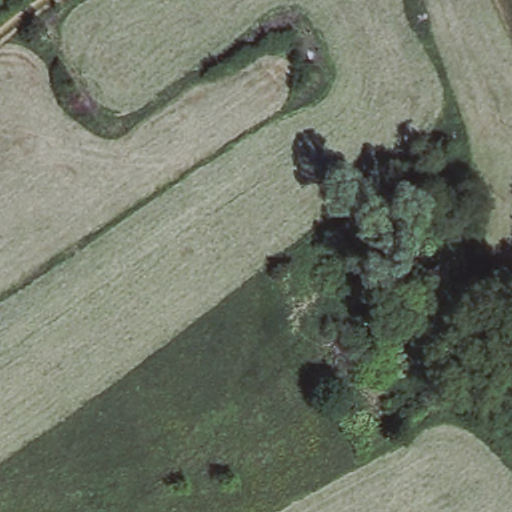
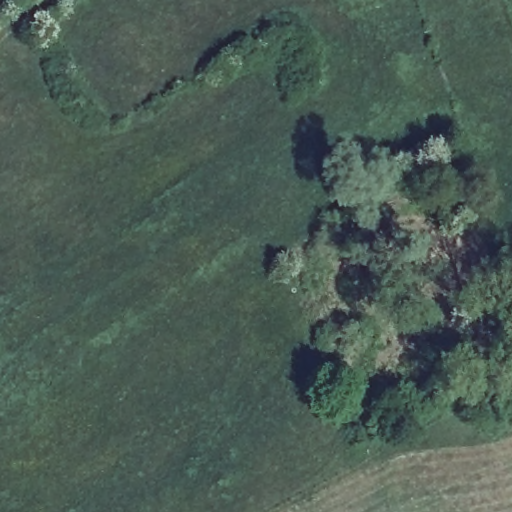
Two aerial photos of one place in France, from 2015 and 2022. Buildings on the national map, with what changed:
unchanged [(421,267),(436,262),(443,281),(427,284),(421,267)]

